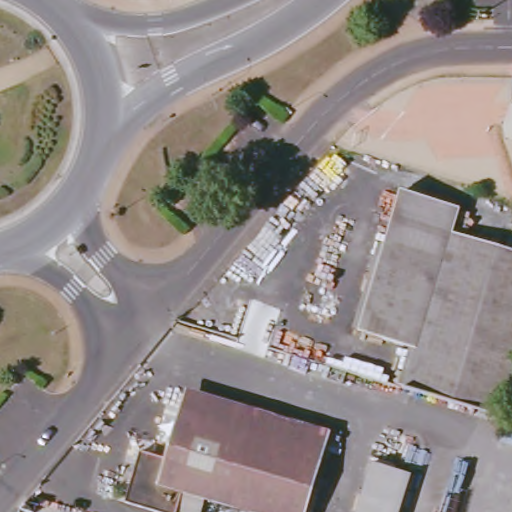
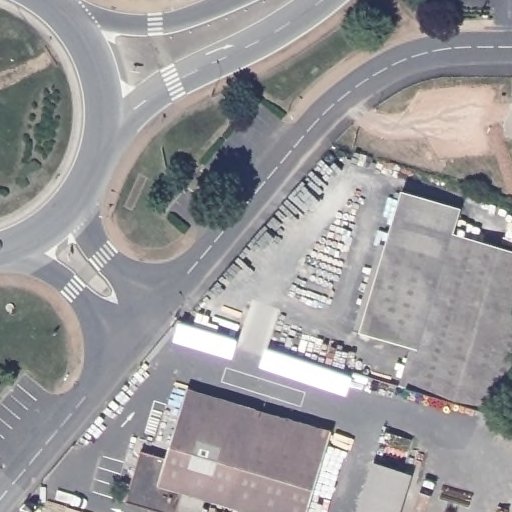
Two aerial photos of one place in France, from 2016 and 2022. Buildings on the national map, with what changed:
unchanged [(400,190),(463,209),(455,234),(512,251),(512,393),(505,418),(400,390),(415,351),(357,332),(400,190)]
unchanged [(181,412),(188,392),(331,436),(325,457),(181,412)]
unchanged [(307,512),(245,512),(182,492),(175,512),(154,512),(125,502),(142,452),(165,460),(181,412),(325,457),(307,512)]
unchanged [(372,464),(411,478),(401,512),(359,512),(372,464)]

